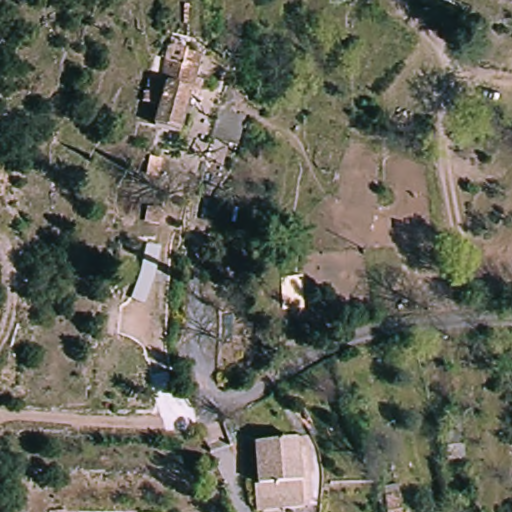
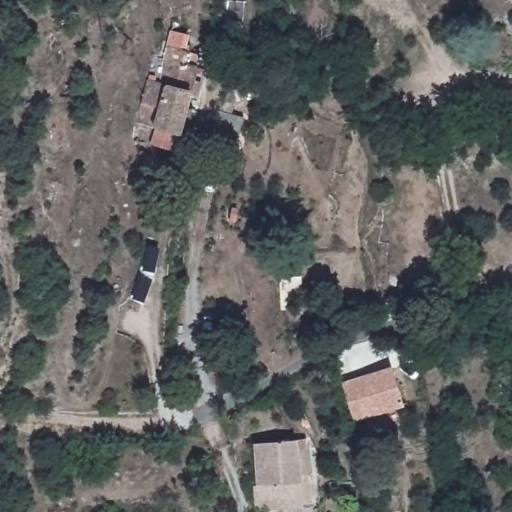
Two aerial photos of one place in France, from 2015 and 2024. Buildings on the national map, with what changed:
unchanged [(172,60),(187,63),(190,52),(202,55),(199,66),(204,67),(184,151),(162,145),(165,128),(143,123),(153,82),(165,85),(172,60)]
new [(344,382),(392,367),(405,407),(355,422),(344,382)]
new [(440,463),(438,446),(446,445),(446,432),(463,431),(465,461),(440,463)]
unchanged [(282,509),(278,488),(259,489),(253,448),(304,440),(306,450),(295,452),(304,506),(282,509)]
unchanged [(403,494),(404,512),(389,512),(389,494),(403,494)]

